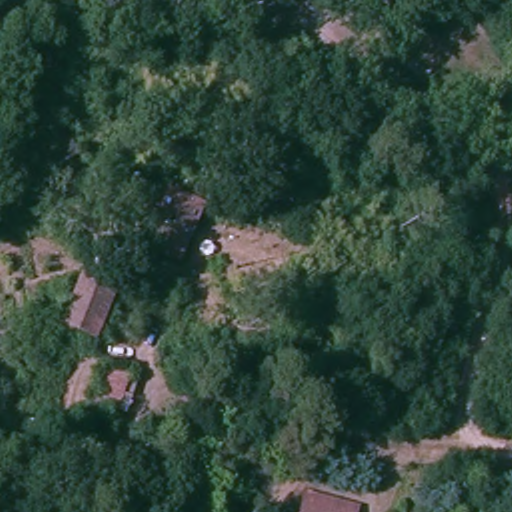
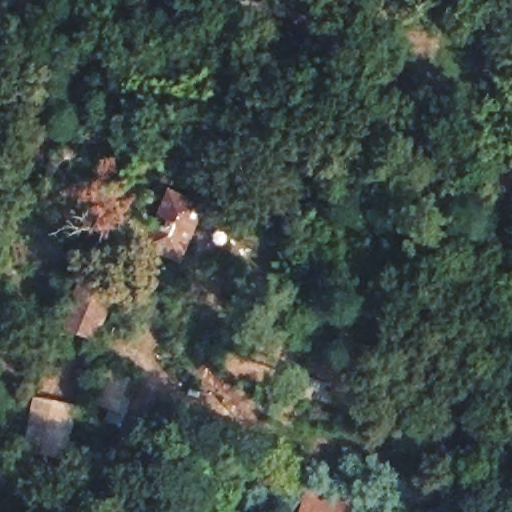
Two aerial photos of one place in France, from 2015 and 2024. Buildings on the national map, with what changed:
unchanged [(201,209),(177,262),(146,246),(170,193),(201,209)]
unchanged [(92,345),(62,333),(80,283),(113,294),(92,345)]
new [(32,396),(79,407),(66,461),(21,450),(32,396)]
unchanged [(303,512),(306,502),(343,512),(303,512)]

